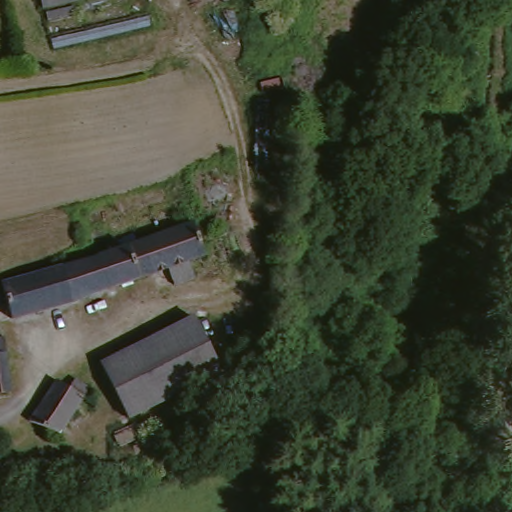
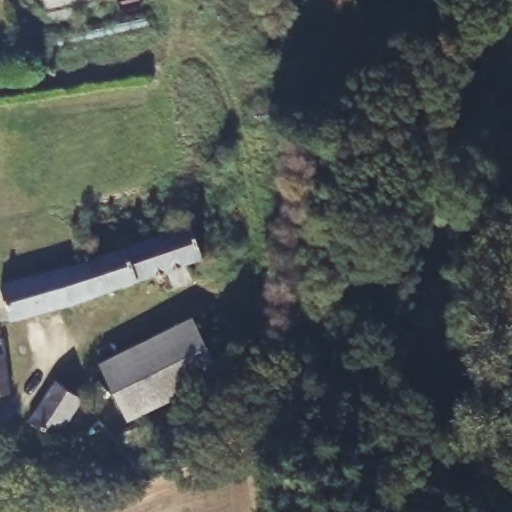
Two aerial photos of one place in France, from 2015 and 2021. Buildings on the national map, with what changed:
unchanged [(39,0),(89,0),(40,7),(39,0)]
unchanged [(200,261),(190,265),(193,277),(188,289),(173,291),(167,272),(72,304),(10,319),(0,281),(53,265),(89,263),(91,255),(190,227),(202,253),(200,261)]
unchanged [(126,421),(102,366),(197,324),(221,378),(126,421)]
unchanged [(6,394),(0,395),(0,347),(6,394)]
unchanged [(78,405),(77,414),(54,446),(25,427),(49,390),(61,398),(67,389),(82,399),(78,405)]

